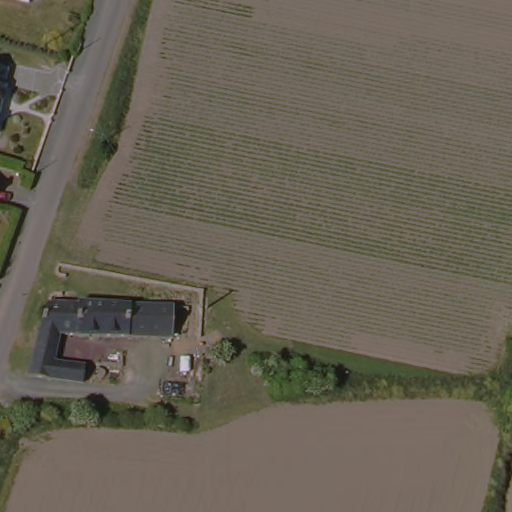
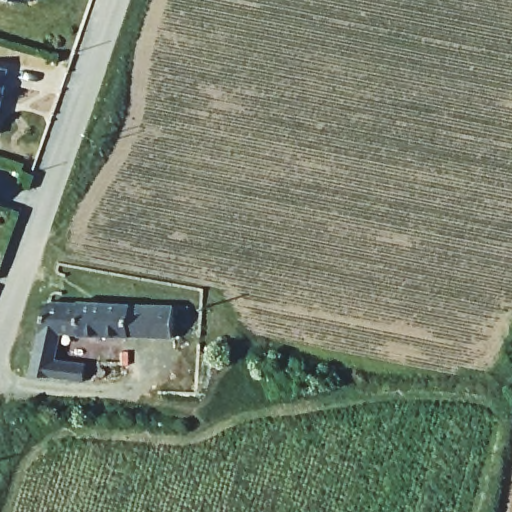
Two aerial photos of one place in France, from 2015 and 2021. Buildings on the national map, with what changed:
unchanged [(0,119),(0,61),(16,64),(0,119)]
unchanged [(163,339),(40,330),(46,299),(119,302),(163,304),(163,339)]
unchanged [(63,344),(63,357),(92,358),(91,377),(85,374),(32,371),(38,343),(63,344)]

